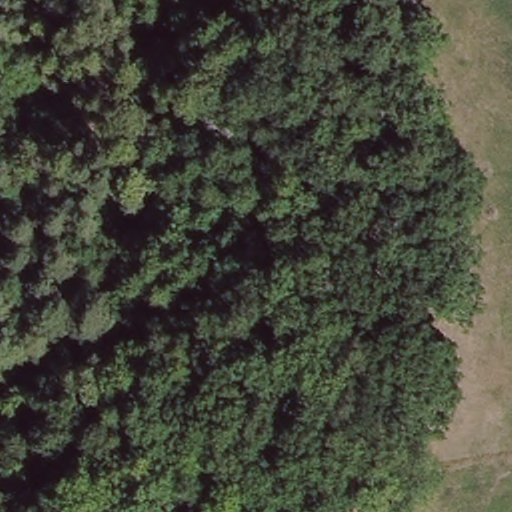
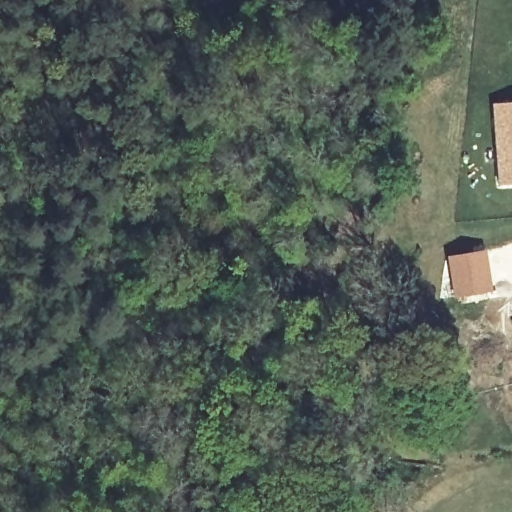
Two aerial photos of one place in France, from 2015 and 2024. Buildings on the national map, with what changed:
new [(490,107),(512,105),(512,186),(496,187),(490,107)]
new [(486,249),(492,291),(452,298),(445,255),(486,249)]

